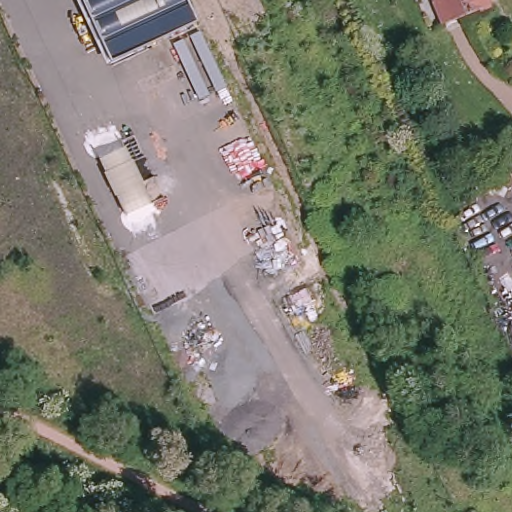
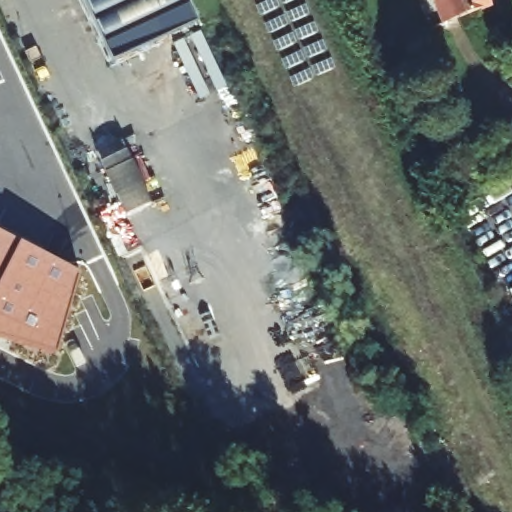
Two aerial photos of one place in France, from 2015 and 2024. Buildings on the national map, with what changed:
unchanged [(110,62),(105,63),(76,0),(185,0),(195,21),(110,62)]
unchanged [(453,26),(439,0),(495,0),(497,5),(453,26)]
unchanged [(123,145),(151,205),(126,216),(99,156),(123,145)]
new [(54,355),(0,339),(0,232),(79,274),(54,355)]

